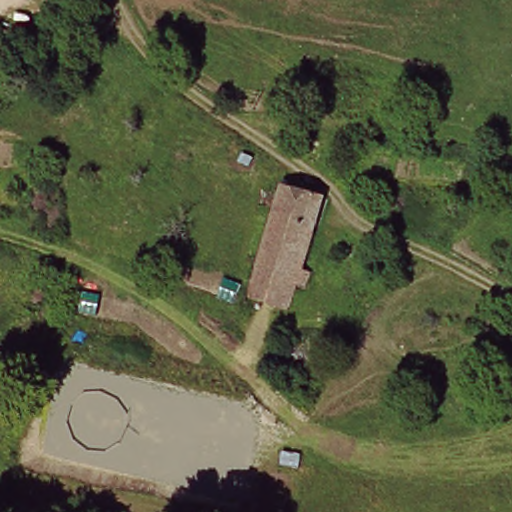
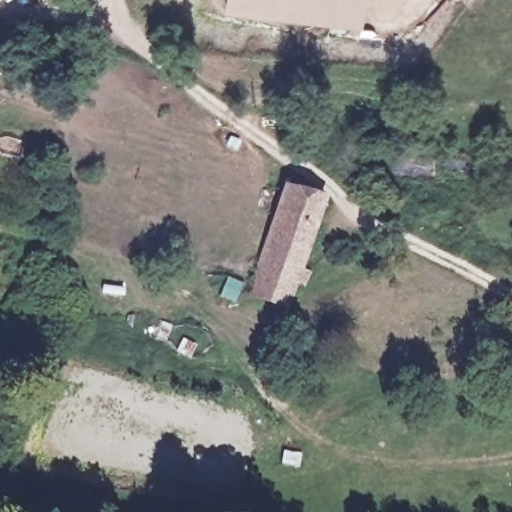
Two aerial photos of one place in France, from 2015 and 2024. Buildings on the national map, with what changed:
new [(225,0),(365,0),(362,32),(224,17),(225,0)]
demolished [(1,71),(12,78),(7,87),(0,99),(0,72),(1,71)]
unchanged [(285,181),(324,194),(285,312),(246,297),(285,181)]

